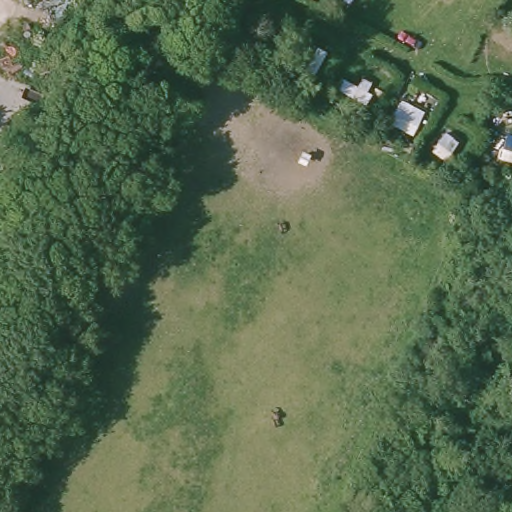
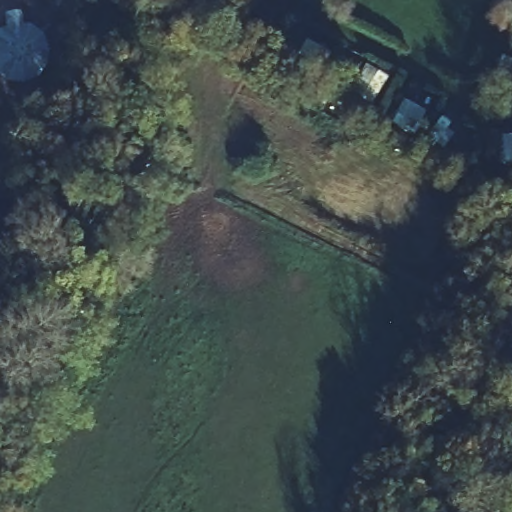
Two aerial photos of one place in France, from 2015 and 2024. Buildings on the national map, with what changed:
[]

